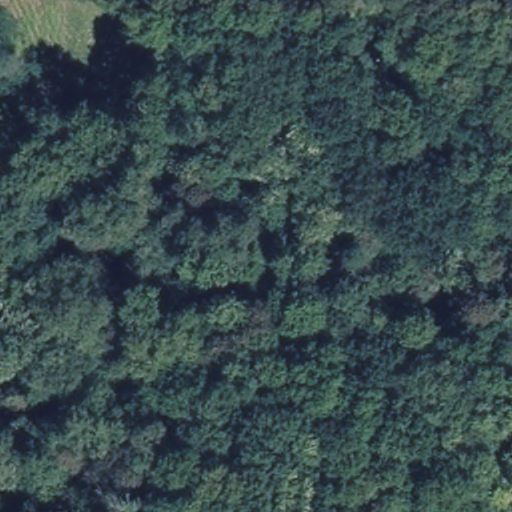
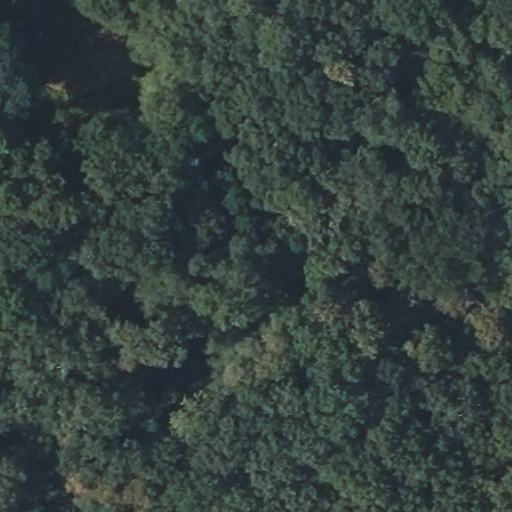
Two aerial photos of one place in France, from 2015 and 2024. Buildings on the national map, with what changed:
[]

